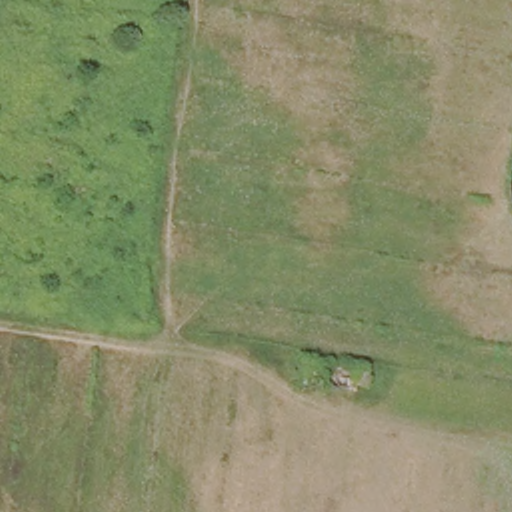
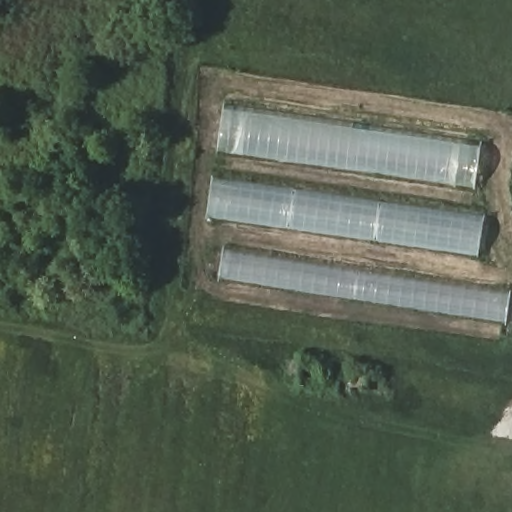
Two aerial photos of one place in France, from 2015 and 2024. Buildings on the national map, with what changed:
new [(223,107),(482,146),(476,188),(218,151),(223,107)]
new [(479,256),(207,218),(213,176),(486,215),(479,256)]
new [(511,291),(507,323),(219,279),(224,247),(511,291)]
unchanged [(364,380),(353,380),(353,385),(301,381),(302,358),(302,351),(311,351),(311,359),(365,364),(364,380)]

